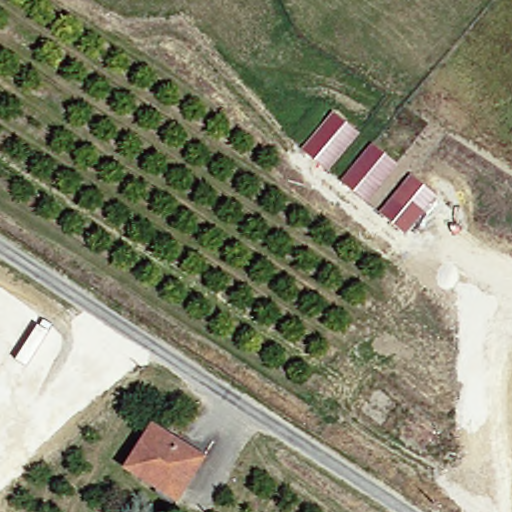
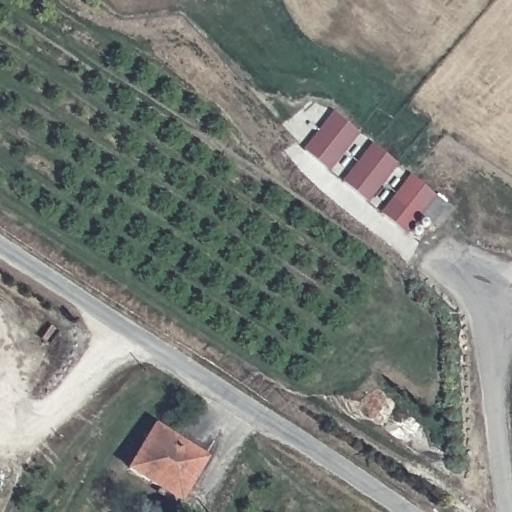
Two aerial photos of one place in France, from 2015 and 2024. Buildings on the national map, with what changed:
unchanged [(359,131),(329,171),(302,149),(330,111),(359,131)]
unchanged [(371,142),(397,163),(367,202),(340,181),(371,142)]
unchanged [(408,176),(436,194),(410,231),(380,213),(408,176)]
unchanged [(177,499),(130,468),(156,429),(203,460),(177,499)]

